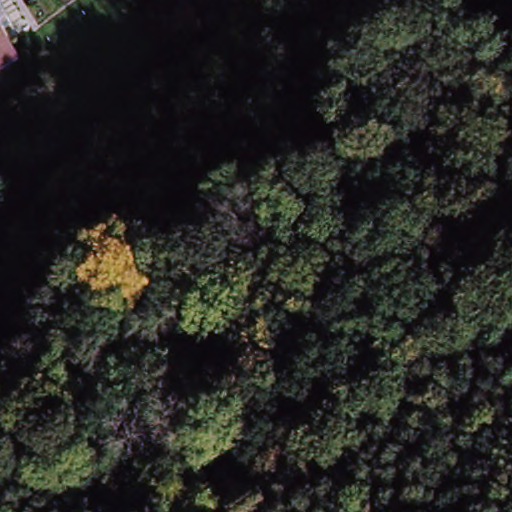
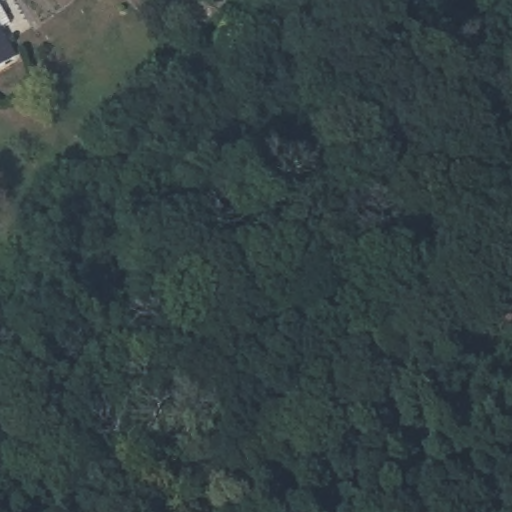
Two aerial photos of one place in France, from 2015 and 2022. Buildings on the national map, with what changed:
unchanged [(10,28),(0,35),(0,12),(10,28)]
unchanged [(12,58),(0,66),(0,38),(12,58)]
unchanged [(102,159),(93,149),(107,134),(117,144),(102,159)]

